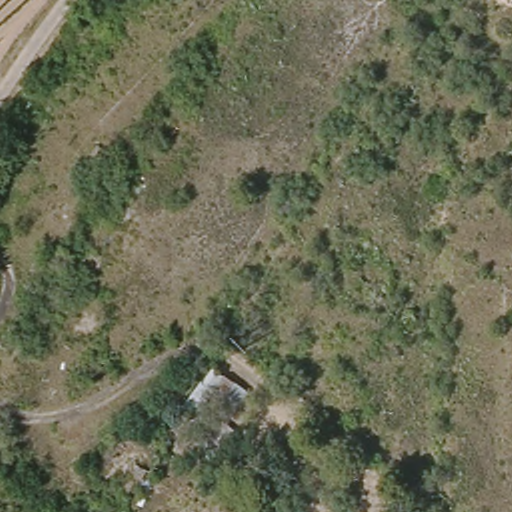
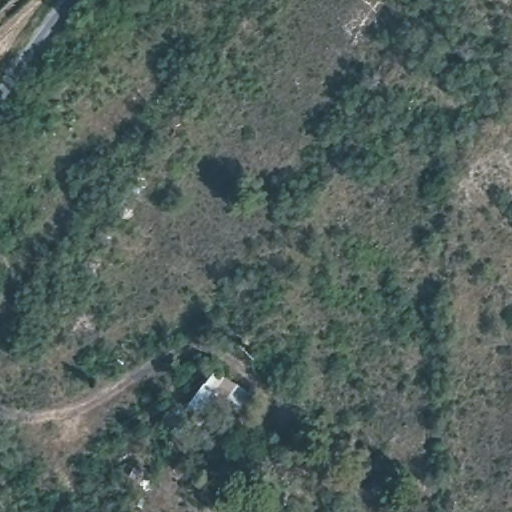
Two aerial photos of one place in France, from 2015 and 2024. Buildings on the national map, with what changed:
unchanged [(217,365),(252,391),(228,424),(234,435),(212,457),(170,425),(217,365)]
unchanged [(281,505),(269,494),(297,450),(313,463),(281,505)]

